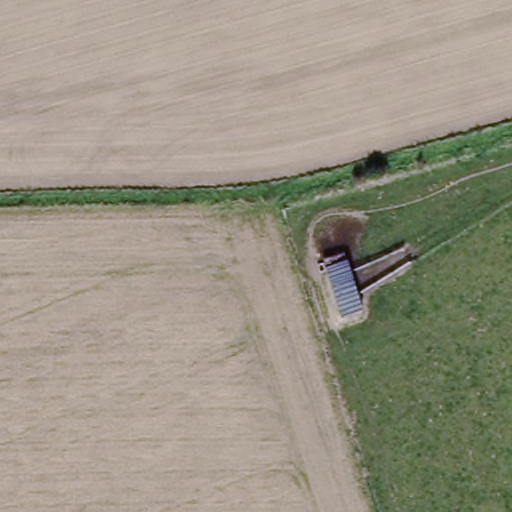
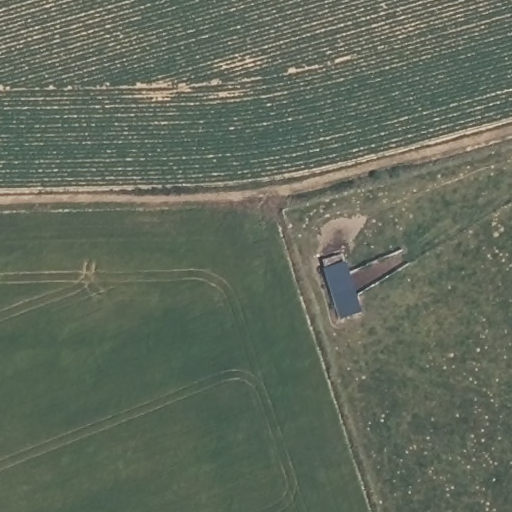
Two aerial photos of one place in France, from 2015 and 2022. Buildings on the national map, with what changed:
unchanged [(326,270),(350,261),(366,316),(341,323),(326,270)]

